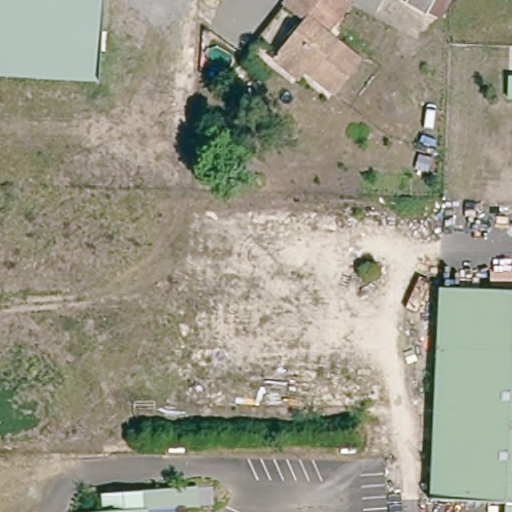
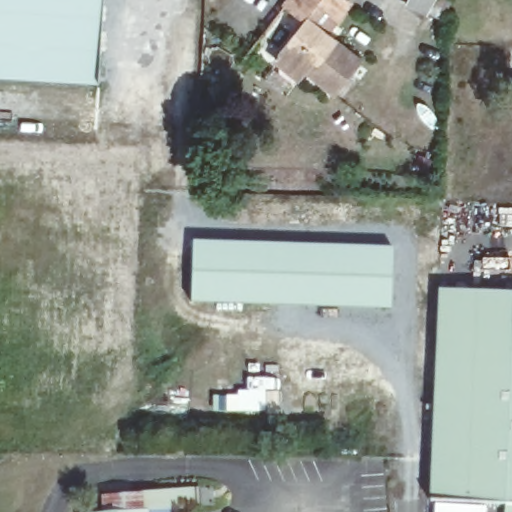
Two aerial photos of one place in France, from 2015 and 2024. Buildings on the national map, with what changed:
unchanged [(0,77),(0,0),(101,0),(97,81),(0,77)]
unchanged [(277,46),(303,19),(283,0),(340,0),(345,2),(322,27),(356,60),(330,89),(306,65),(302,69),(295,78),(270,53),(277,46)]
unchanged [(390,0),(419,0),(413,12),(390,0)]
new [(192,239),(394,245),(391,310),(190,303),(192,239)]
unchanged [(504,504),(432,500),(436,384),(439,288),(512,292),(512,512),(503,512),(504,504)]
new [(213,394),(248,390),(248,377),(280,377),(280,412),(213,411),(213,394)]
unchanged [(136,510),(134,493),(188,489),(190,505),(170,506),(170,512),(105,512),(136,510)]

